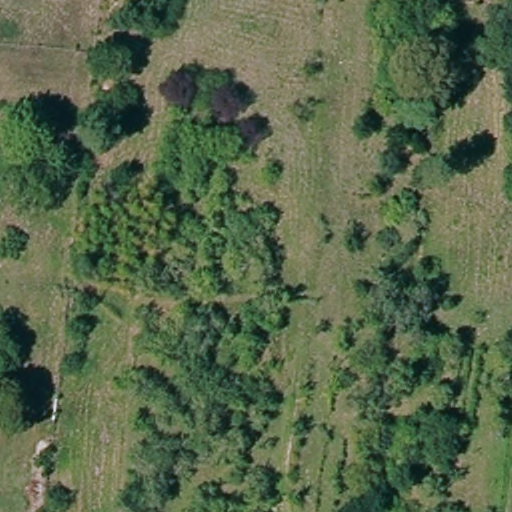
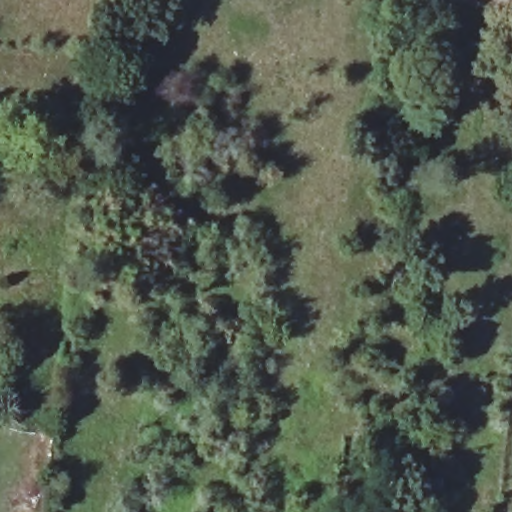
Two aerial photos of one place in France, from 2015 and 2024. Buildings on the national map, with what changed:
unchanged [(5,494),(7,479),(45,486),(42,512),(10,512),(13,495),(5,494)]

